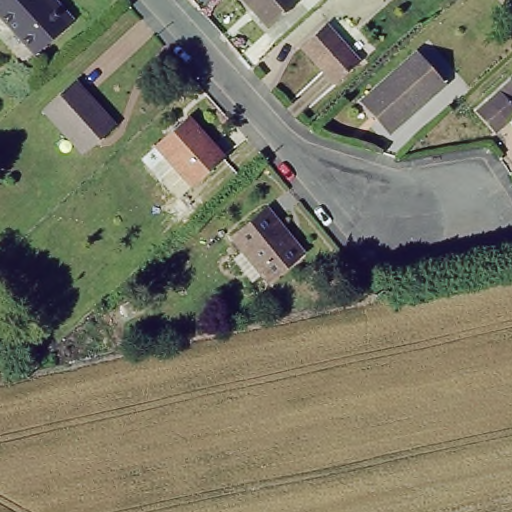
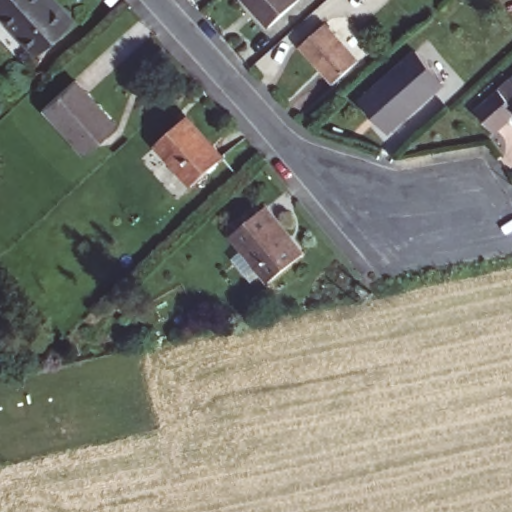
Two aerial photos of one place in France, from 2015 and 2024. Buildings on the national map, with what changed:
unchanged [(66,21),(33,49),(0,14),(0,0),(45,0),(66,21)]
unchanged [(269,25),(244,0),(294,0),(269,25)]
unchanged [(323,22),(357,60),(333,82),(299,45),(323,22)]
unchanged [(438,78),(428,87),(432,93),(392,130),(362,99),(412,50),(438,78)]
unchanged [(512,85),(512,140),(503,130),(499,133),(473,107),(504,77),(512,85)]
unchanged [(71,78),(112,120),(78,150),(39,108),(71,78)]
unchanged [(181,115),(221,154),(191,182),(151,144),(181,115)]
unchanged [(261,205),(272,216),(269,220),(289,242),(293,240),(302,250),(269,280),(258,268),(228,235),(261,205)]
unchanged [(361,291),(357,288),(371,275),(382,286),(361,291)]

